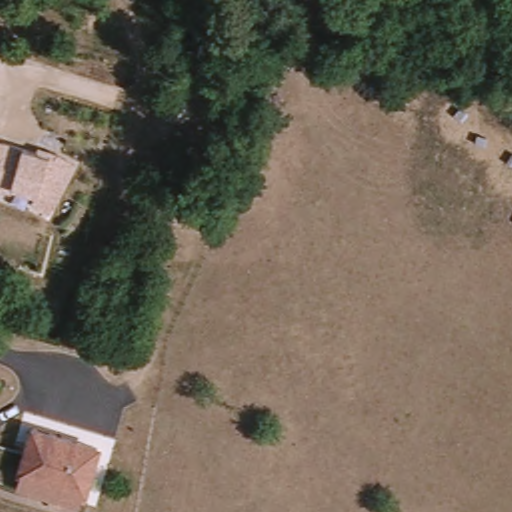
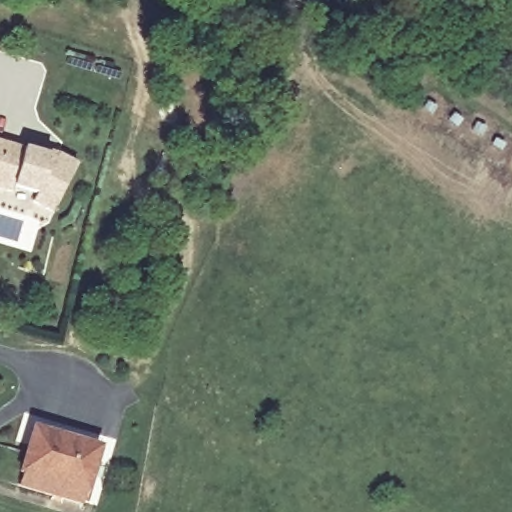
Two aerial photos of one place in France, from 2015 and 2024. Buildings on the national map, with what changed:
unchanged [(32,196),(9,189),(7,194),(0,192),(0,146),(32,156),(34,151),(53,157),(71,166),(46,214),(27,204),(32,196)]
unchanged [(97,453),(82,503),(21,485),(37,433),(97,453)]

